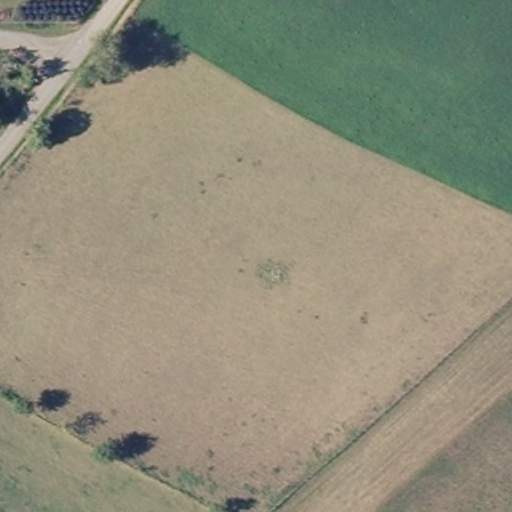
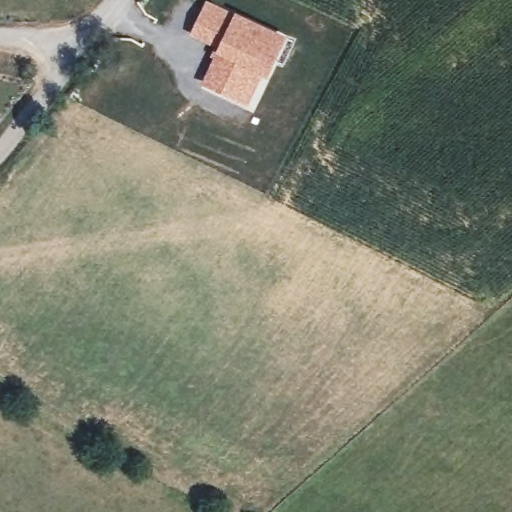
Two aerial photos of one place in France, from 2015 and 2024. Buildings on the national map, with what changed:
new [(206,4),(235,18),(222,46),(193,32),(206,4)]
new [(222,46),(235,18),(279,39),(263,72),(258,69),(249,88),(232,81),(226,93),(205,83),(222,46)]

